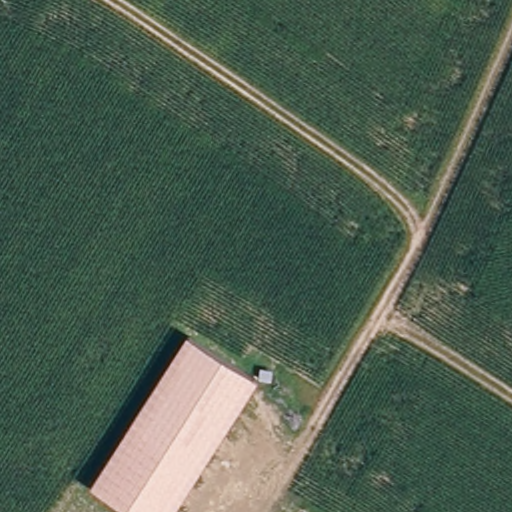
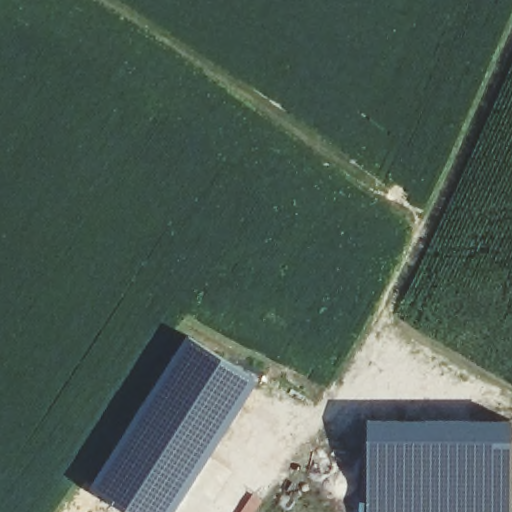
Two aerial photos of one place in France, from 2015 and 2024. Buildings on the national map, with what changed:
unchanged [(257,380),(173,512),(130,512),(88,485),(186,335),(257,380)]
new [(461,417),(511,419),(510,512),(365,512),(365,416),(461,417)]

